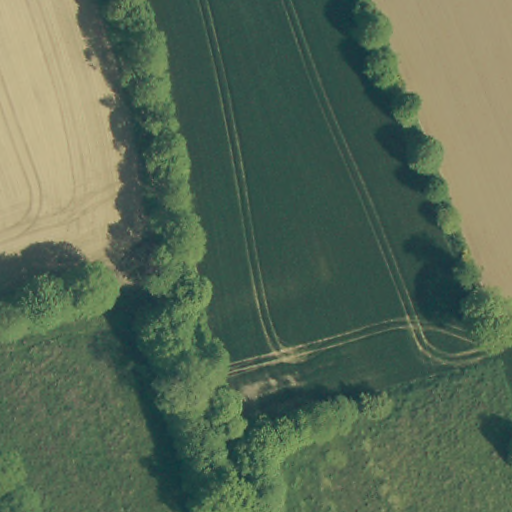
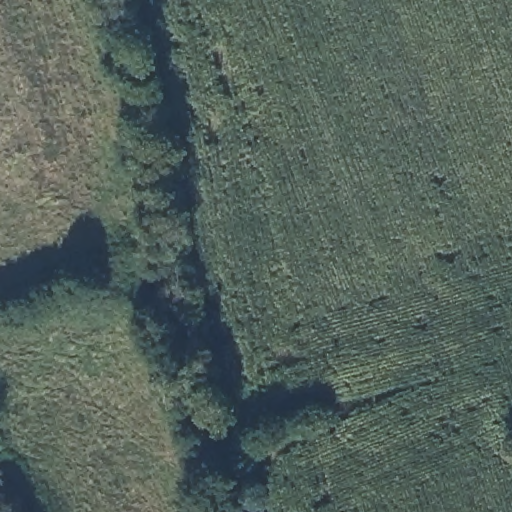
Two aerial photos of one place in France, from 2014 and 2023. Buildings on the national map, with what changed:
[]

